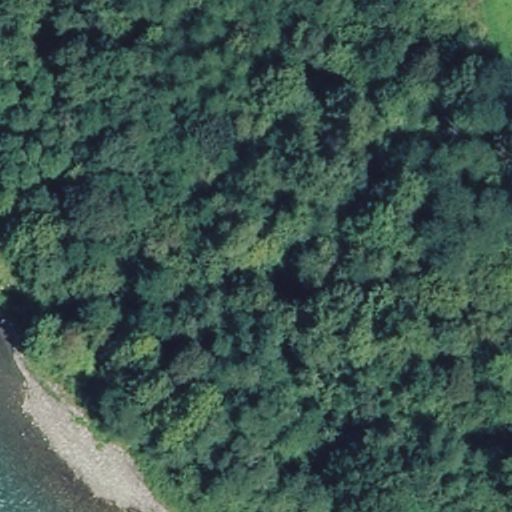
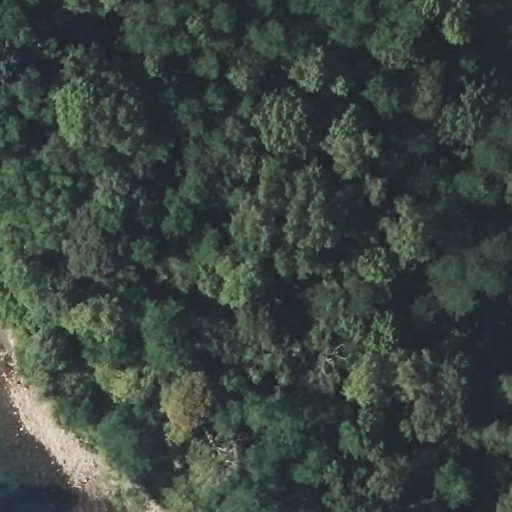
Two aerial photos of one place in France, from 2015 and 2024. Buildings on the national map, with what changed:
[]

